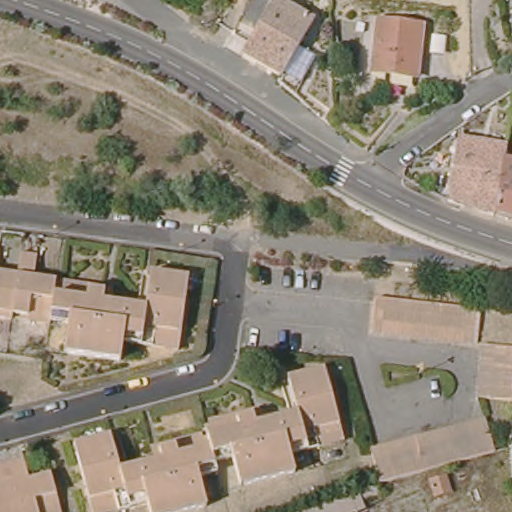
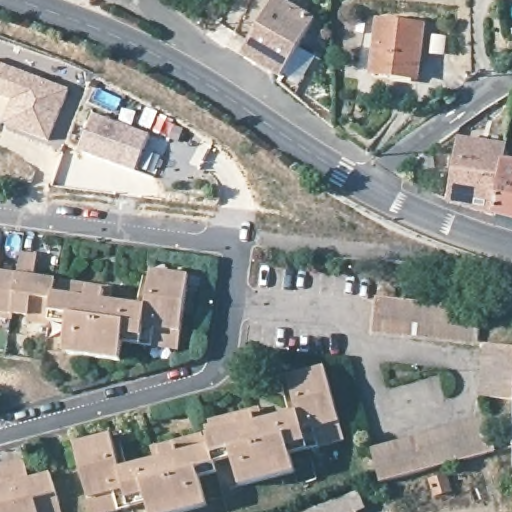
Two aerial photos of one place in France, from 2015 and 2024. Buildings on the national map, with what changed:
unchanged [(273,76),(270,74),(268,73),(264,71),(261,69),(238,55),(270,0),(280,0),(279,2),(311,21),(276,78),(273,76)]
unchanged [(375,74),(383,20),(426,26),(419,79),(375,74)]
new [(0,68),(60,89),(41,142),(13,131),(0,127),(0,116),(5,101),(21,107),(0,100),(0,68)]
new [(137,173),(79,153),(94,114),(149,134),(137,173)]
unchanged [(508,140),(511,140),(507,157),(496,211),(449,198),(459,134),(508,140)]
unchanged [(512,158),(512,215),(496,211),(507,157),(512,158)]
unchanged [(378,296),(483,307),(479,341),(374,331),(378,296)]
unchanged [(512,345),(512,393),(511,397),(476,392),(487,342),(512,345)]
unchanged [(155,441),(202,430),(203,433),(208,432),(208,423),(211,422),(211,417),(259,405),(263,422),(298,414),(289,377),(328,368),(346,441),(321,447),(316,431),(304,434),(306,443),(291,446),(292,454),(295,470),(274,474),(240,482),(234,457),(232,450),(214,454),(216,462),(216,466),(198,469),(200,476),(206,505),(177,512),(151,512),(148,500),(146,491),(130,495),(128,485),(116,488),(120,506),(120,508),(104,512),(95,512),(78,441),(115,432),(123,467),(158,459),(159,459),(155,441)]
unchanged [(492,451),(381,484),(372,450),(374,449),(482,416),(492,451)]
unchanged [(21,460),(27,480),(48,474),(57,512),(0,512),(0,465),(4,464),(21,460)]
unchanged [(363,488),(369,508),(361,512),(304,512),(363,488)]

